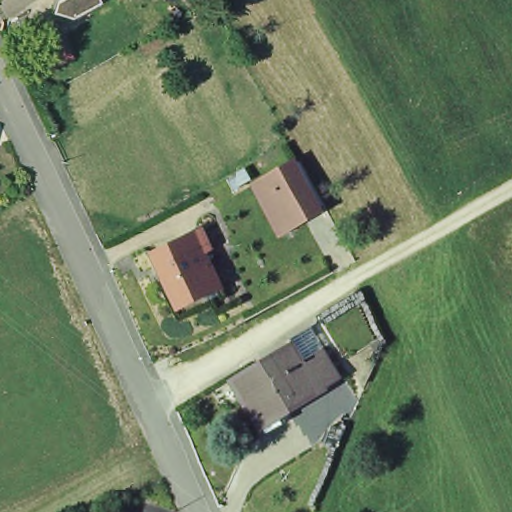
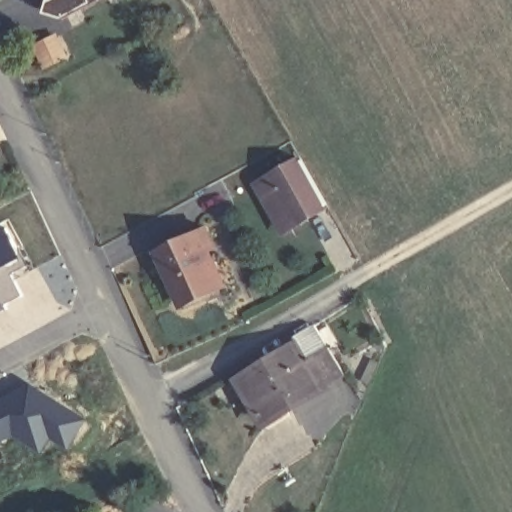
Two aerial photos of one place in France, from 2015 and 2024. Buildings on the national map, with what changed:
unchanged [(55,3),(54,0),(60,0),(55,3)]
unchanged [(285,168),(310,211),(280,228),(255,184),(285,168)]
new [(24,261),(12,269),(25,295),(0,311),(0,223),(2,222),(24,261)]
unchanged [(163,256),(205,237),(227,287),(190,305),(175,272),(172,274),(163,256)]
unchanged [(317,334),(344,383),(325,394),(300,351),(295,343),(302,339),(317,334)]
unchanged [(265,428),(240,385),(300,351),(325,394),(265,428)]
new [(50,393),(91,419),(68,452),(55,443),(41,458),(15,437),(0,443),(0,398),(27,381),(50,393)]

